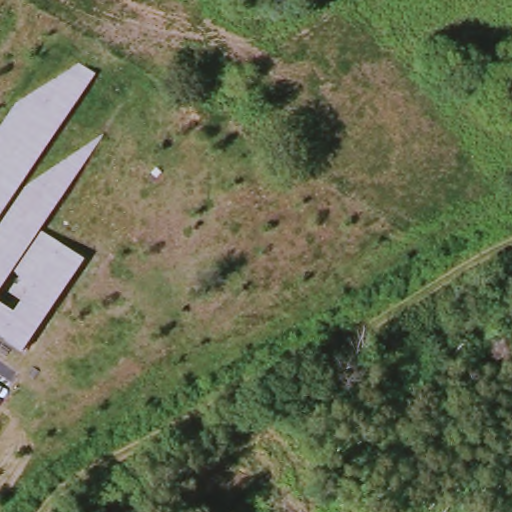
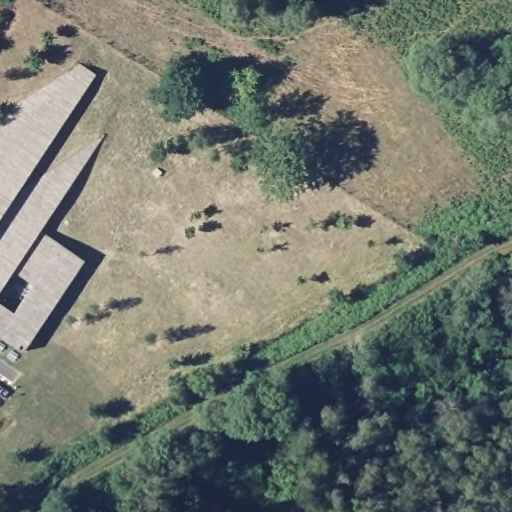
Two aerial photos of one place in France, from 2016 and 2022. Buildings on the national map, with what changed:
unchanged [(0,338),(0,123),(15,100),(78,62),(96,74),(18,189),(104,132),(40,230),(83,257),(21,351),(0,338)]

